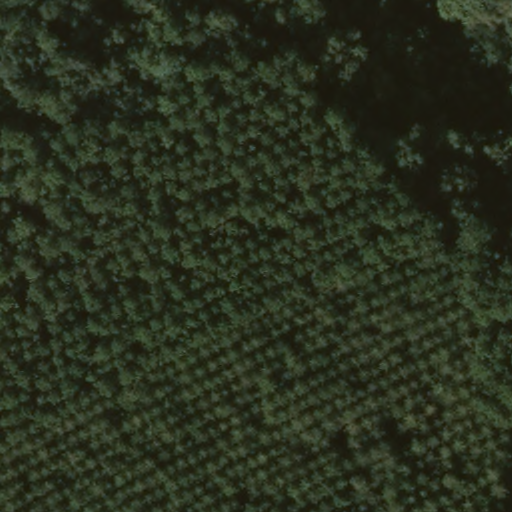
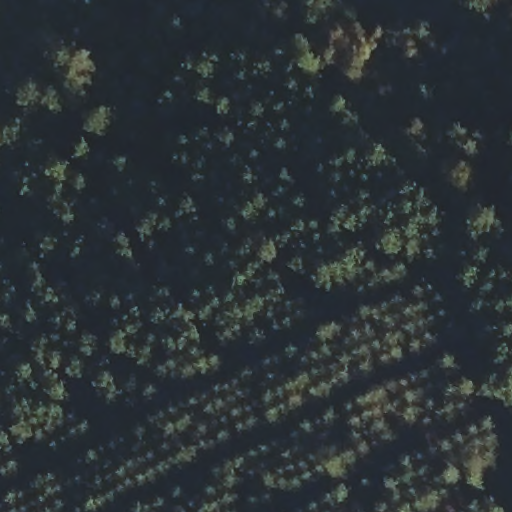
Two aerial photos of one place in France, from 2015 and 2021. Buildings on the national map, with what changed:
[]

